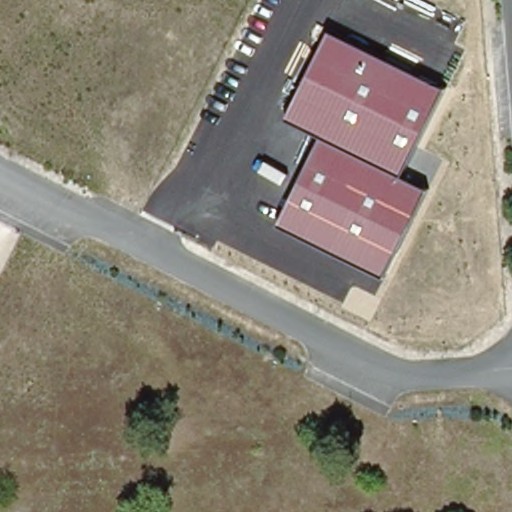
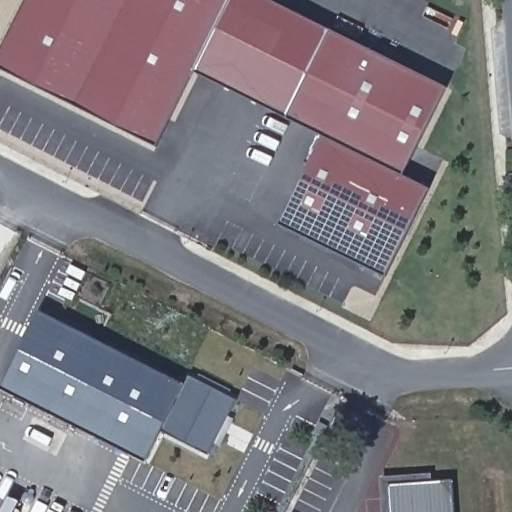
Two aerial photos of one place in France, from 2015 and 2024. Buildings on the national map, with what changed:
new [(28,0),(231,0),(195,74),(159,150),(0,72),(0,57),(28,0)]
new [(231,0),(270,0),(330,30),(288,118),(195,74),(231,0)]
unchanged [(402,174),(322,135),(288,118),(330,30),(447,87),(402,174)]
unchanged [(427,187),(386,276),(280,222),(322,135),(402,174),(427,187)]
new [(76,427),(1,389),(39,310),(116,347),(80,421),(76,427)]
new [(192,380),(197,371),(244,395),(216,451),(169,427),(153,458),(80,421),(118,342),(192,380)]
new [(452,481),(455,512),(391,512),(389,485),(452,481)]

